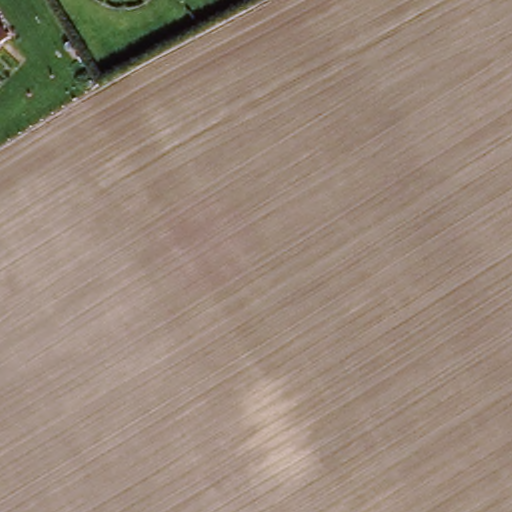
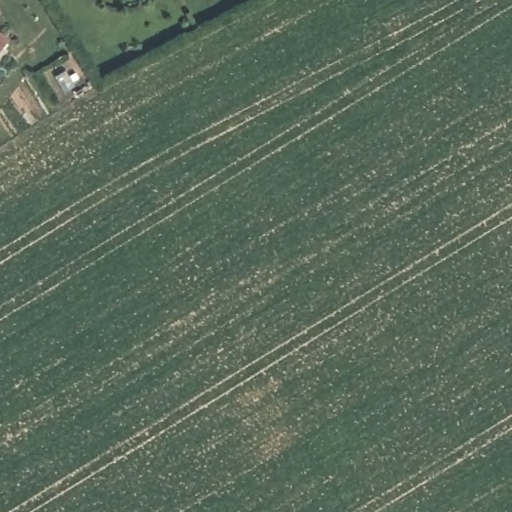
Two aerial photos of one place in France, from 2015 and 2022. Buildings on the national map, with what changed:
unchanged [(8,41),(0,50),(0,33),(8,41)]

